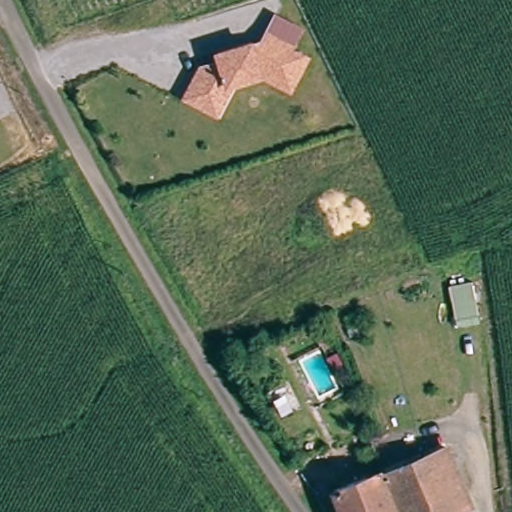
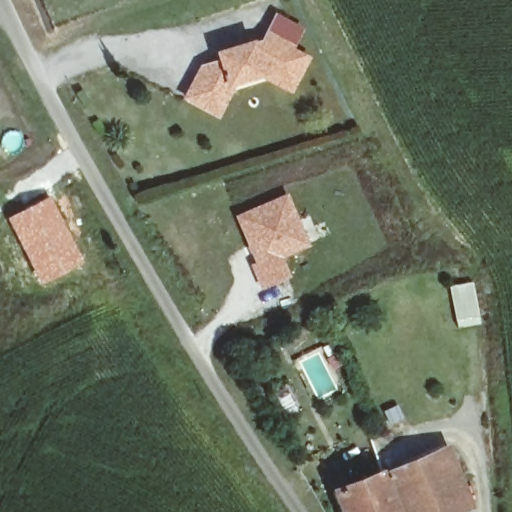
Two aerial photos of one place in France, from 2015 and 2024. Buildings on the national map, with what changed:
unchanged [(185,96),(189,89),(202,66),(221,61),(220,53),(236,49),(254,44),(255,48),(256,53),(261,52),(271,34),(295,48),(292,53),(308,63),(290,93),(262,76),(234,83),(216,114),(185,96)]
new [(310,247),(282,259),(290,277),(260,289),(249,264),(254,261),(235,216),(288,194),(310,247)]
new [(50,195),(83,262),(40,285),(5,218),(50,195)]
unchanged [(472,503),(452,512),(399,512),(382,471),(446,443),(472,503)]
unchanged [(399,512),(342,512),(333,491),(382,471),(399,512)]

